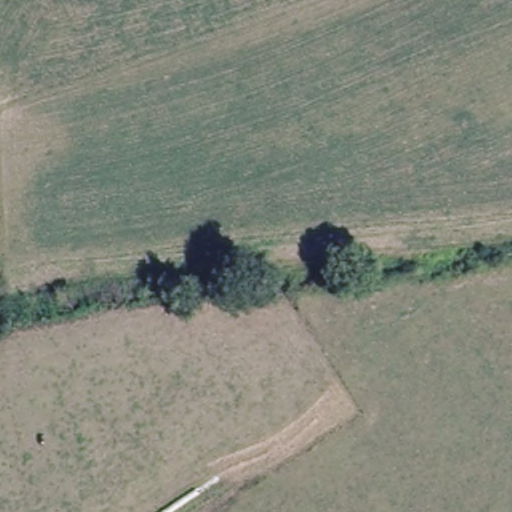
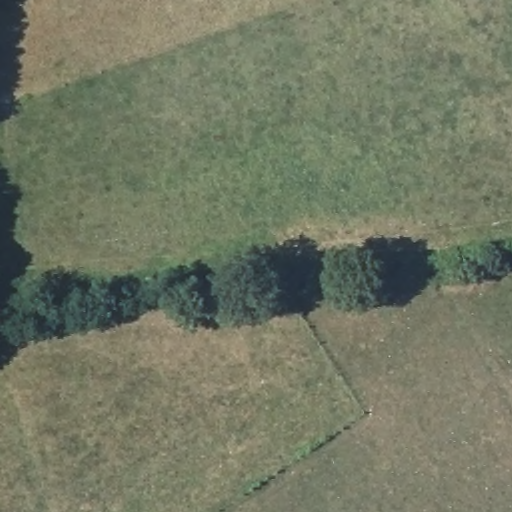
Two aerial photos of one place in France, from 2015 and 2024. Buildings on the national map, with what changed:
[]

